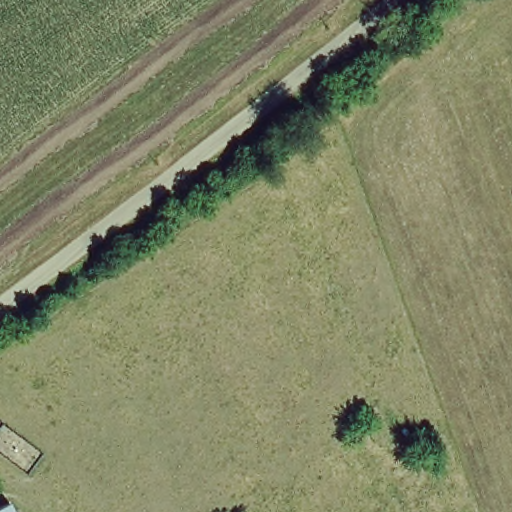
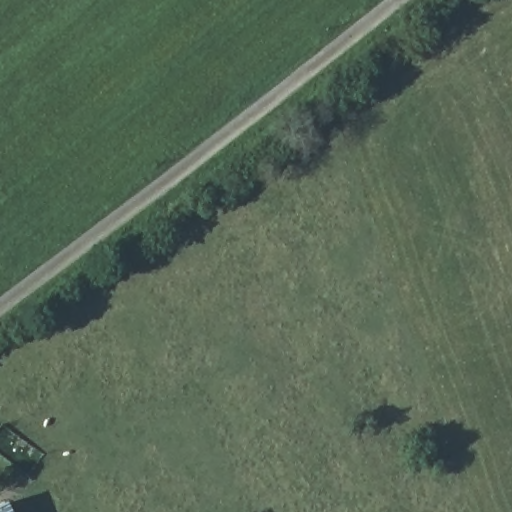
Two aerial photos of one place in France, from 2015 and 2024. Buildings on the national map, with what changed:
unchanged [(9,502),(14,512),(0,512),(0,507),(9,502)]

